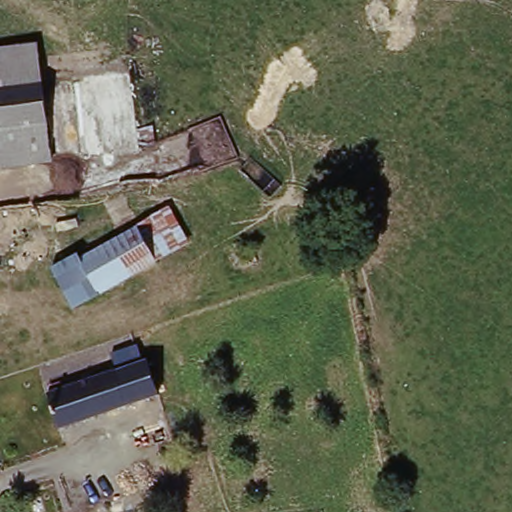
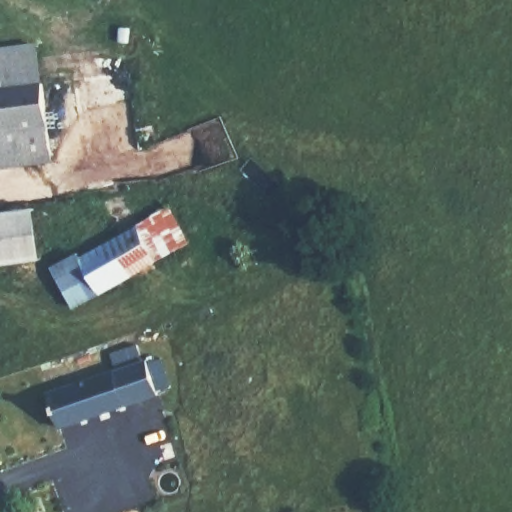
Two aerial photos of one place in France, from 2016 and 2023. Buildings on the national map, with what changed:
unchanged [(0,51),(39,47),(44,85),(0,90),(0,51)]
unchanged [(0,129),(0,90),(44,85),(48,84),(52,121),(0,129)]
unchanged [(0,168),(0,129),(52,121),(57,162),(0,168)]
unchanged [(84,298),(64,267),(172,199),(192,232),(84,298)]
new [(0,267),(0,211),(35,206),(42,261),(0,267)]
unchanged [(150,357),(160,389),(100,407),(62,420),(50,390),(150,357)]

